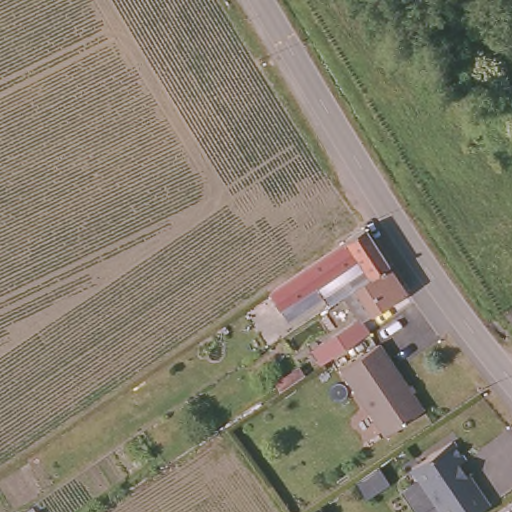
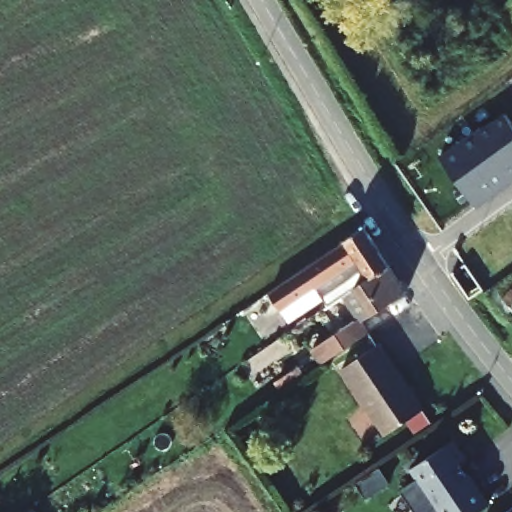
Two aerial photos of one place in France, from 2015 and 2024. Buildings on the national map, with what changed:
new [(512,182),(476,207),(440,157),(505,114),(512,124),(512,182)]
unchanged [(336,295),(318,307),(313,301),(279,324),(259,293),(336,242),(336,241),(356,228),(381,266),(336,295)]
unchanged [(336,295),(381,266),(399,293),(354,322),(336,295)]
unchanged [(308,352),(332,336),(354,322),(361,332),(339,347),(315,363),(308,352)]
unchanged [(422,404),(385,429),(341,363),(378,339),(422,404)]
unchanged [(465,455),(459,460),(468,472),(469,471),(489,502),(475,512),(443,512),(412,464),(454,437),(465,455)]
unchanged [(444,512),(415,512),(401,491),(422,479),(444,512)]
unchanged [(512,510),(512,512),(509,512),(512,510)]

